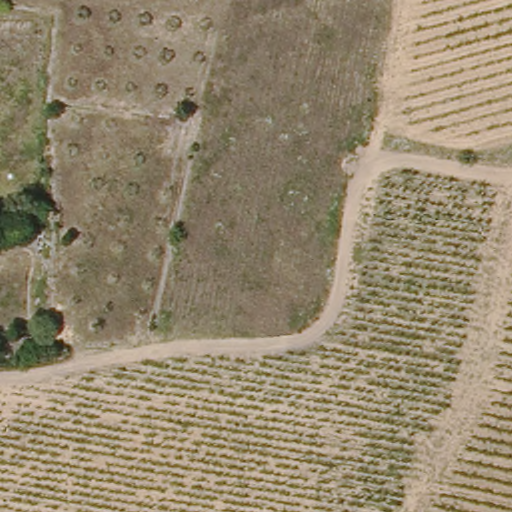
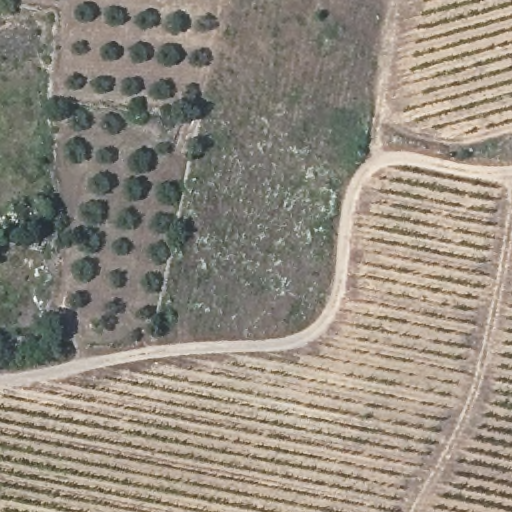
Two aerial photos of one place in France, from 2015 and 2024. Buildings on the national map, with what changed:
unchanged [(39,248),(27,247),(30,226),(40,228),(39,248)]

